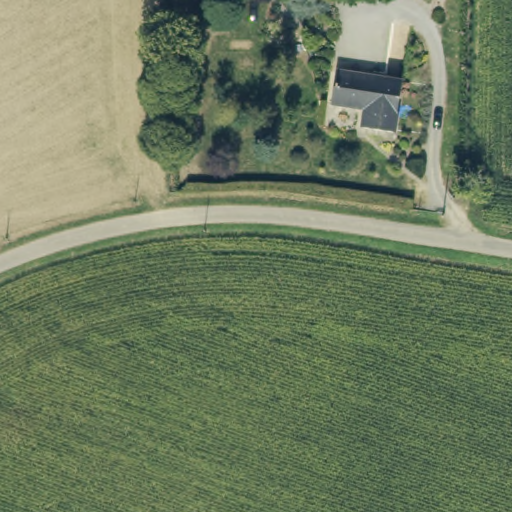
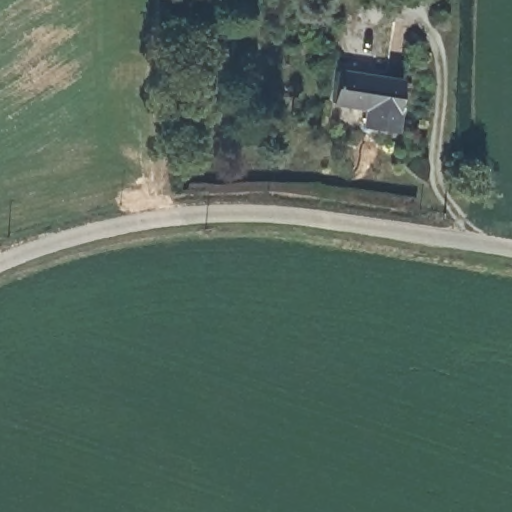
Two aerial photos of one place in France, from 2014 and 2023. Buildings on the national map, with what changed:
unchanged [(402,84),(392,131),(362,126),(364,111),(330,105),(338,72),(402,84)]

